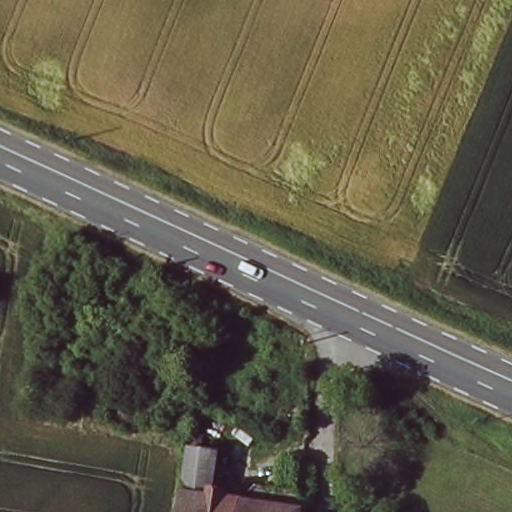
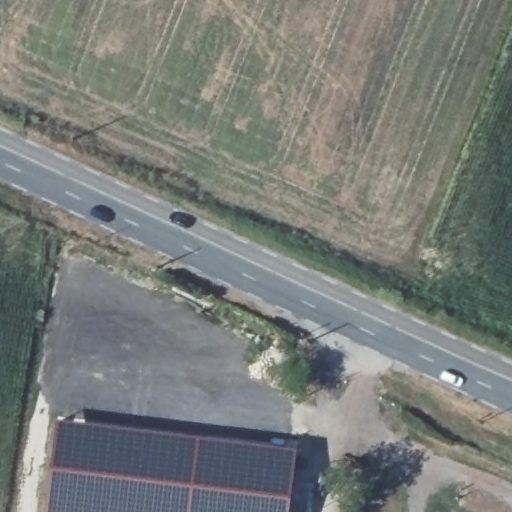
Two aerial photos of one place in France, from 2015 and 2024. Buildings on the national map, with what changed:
unchanged [(178,394),(185,356),(200,359),(193,397),(178,394)]
new [(57,420),(171,432),(297,449),(289,512),(48,512),(52,457),(57,420)]
demolished [(222,447),(217,485),(232,484),(232,497),(307,505),(306,512),(176,512),(184,445),(222,447)]

